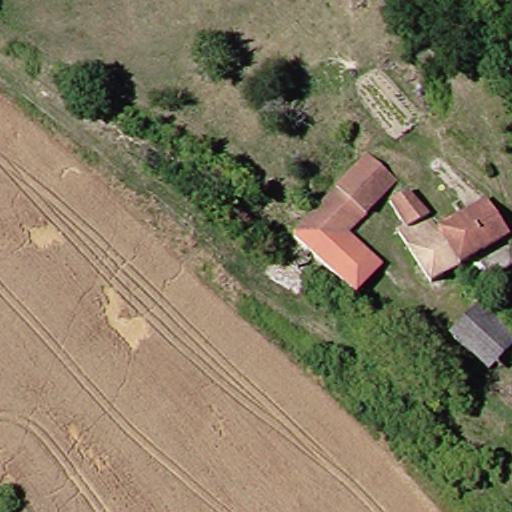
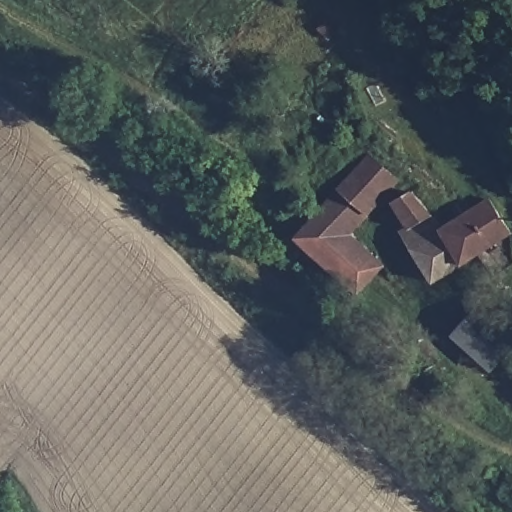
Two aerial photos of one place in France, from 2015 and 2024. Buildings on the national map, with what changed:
unchanged [(360,169),(384,142),(414,169),(389,201),(360,169)]
unchanged [(359,232),(334,203),(360,169),(389,201),(359,232)]
unchanged [(410,239),(422,230),(405,203),(423,192),(448,231),(484,214),(500,246),(436,285),(410,239)]
unchanged [(365,298),(355,287),(310,237),(334,203),(359,232),(379,259),(390,267),(365,298)]
unchanged [(512,362),(504,370),(462,331),(489,304),(512,325),(512,362)]

